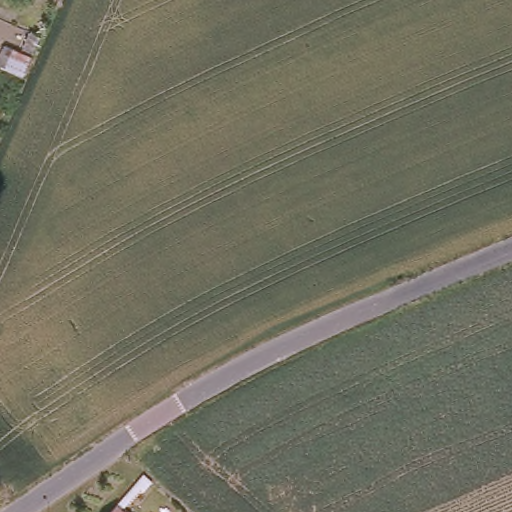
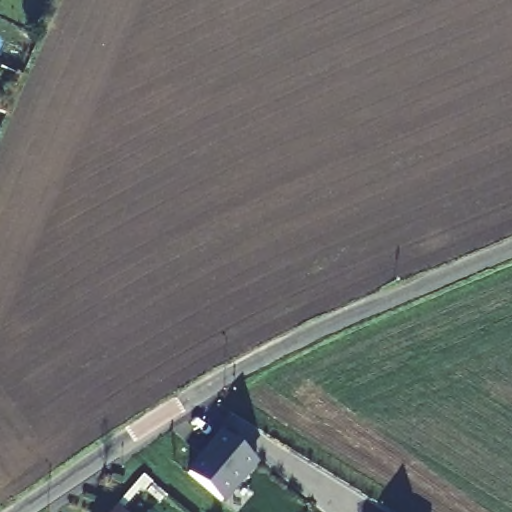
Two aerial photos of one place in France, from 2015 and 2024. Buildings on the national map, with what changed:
new [(189,475),(212,448),(209,446),(222,432),(257,462),(221,503),(189,475)]
unchanged [(111,512),(116,506),(122,512),(111,512)]

